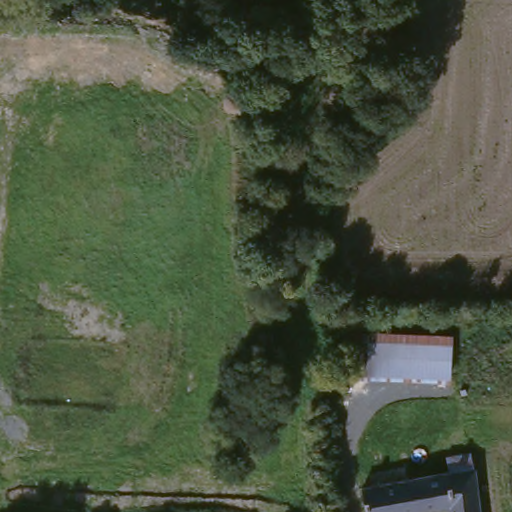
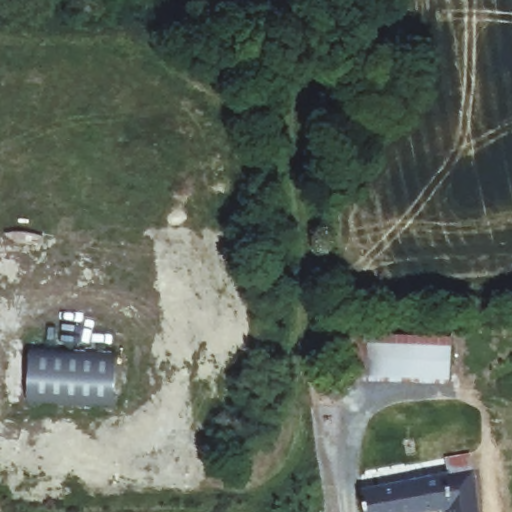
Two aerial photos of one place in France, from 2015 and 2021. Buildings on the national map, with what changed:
unchanged [(343,382),(342,346),(359,345),(361,323),(406,324),(404,343),(451,345),(446,385),(343,382)]
new [(116,350),(114,403),(25,400),(28,345),(116,350)]
unchanged [(461,461),(471,512),(443,512),(441,498),(357,511),(355,480),(461,461)]

